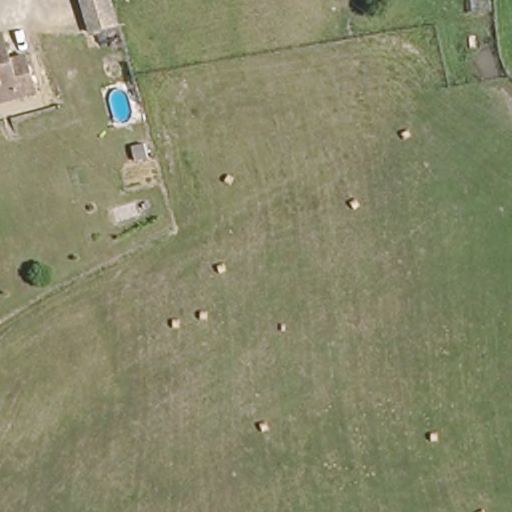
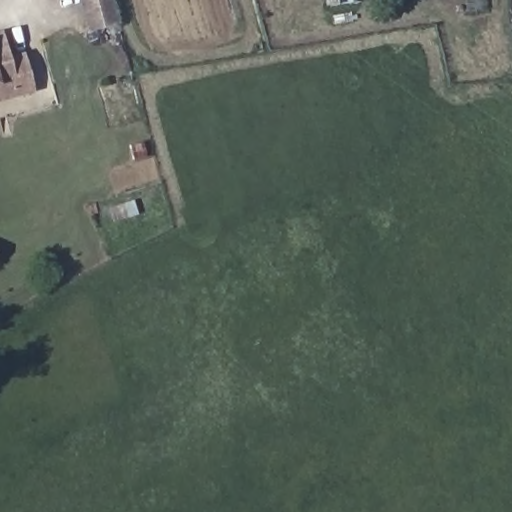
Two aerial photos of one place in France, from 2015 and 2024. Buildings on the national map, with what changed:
unchanged [(92,31),(83,0),(111,0),(118,24),(92,31)]
unchanged [(8,57),(24,53),(33,89),(17,92),(0,97),(0,36),(2,36),(8,57)]

